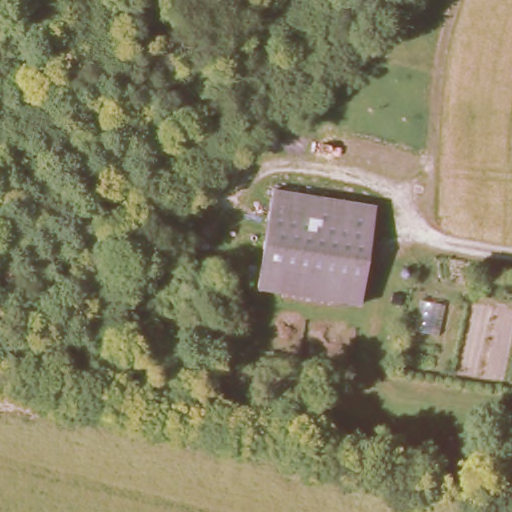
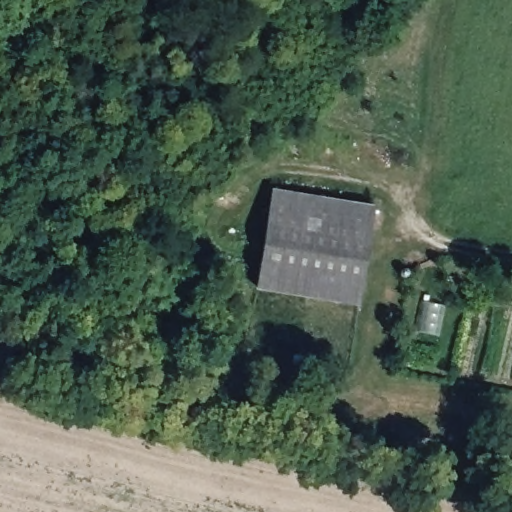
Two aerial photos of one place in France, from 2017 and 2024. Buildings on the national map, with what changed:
unchanged [(369,207),(354,305),(251,288),(268,191),(369,207)]
unchanged [(512,433),(512,488),(489,483),(498,431),(512,433)]
unchanged [(487,439),(484,456),(471,454),(474,437),(487,439)]

